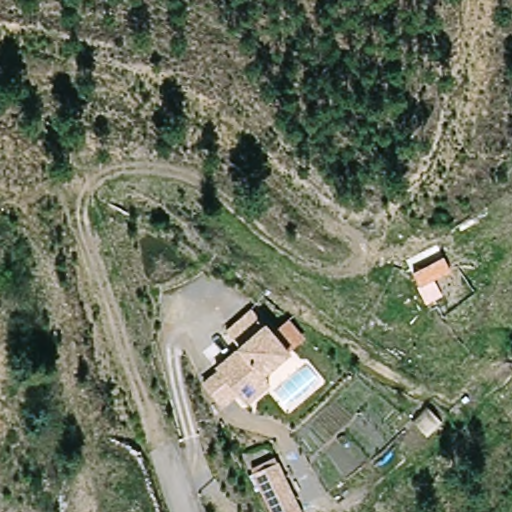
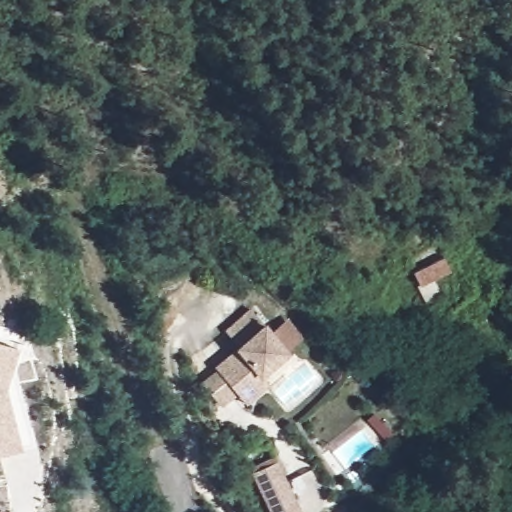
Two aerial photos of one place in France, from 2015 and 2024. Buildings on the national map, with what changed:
unchanged [(248,402),(240,394),(216,368),(239,347),(224,331),(249,309),(264,324),(288,351),(263,374),(270,382),(248,402)]
new [(0,344),(18,349),(5,390),(21,450),(0,456),(0,344)]
unchanged [(253,474),(274,462),(302,512),(274,512),(253,474)]

